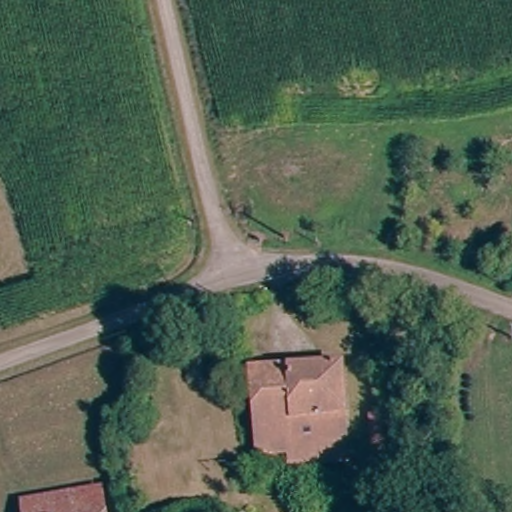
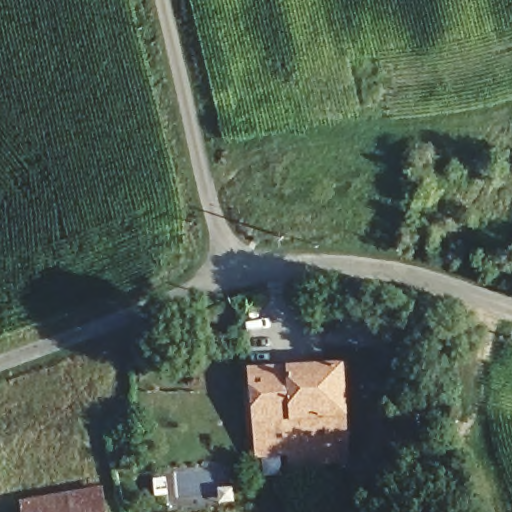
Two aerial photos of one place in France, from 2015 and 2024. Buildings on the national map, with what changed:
unchanged [(293,460),(290,453),(261,454),(254,369),(341,360),(351,454),(293,460)]
unchanged [(106,495),(109,512),(23,512),(23,506),(106,495)]

